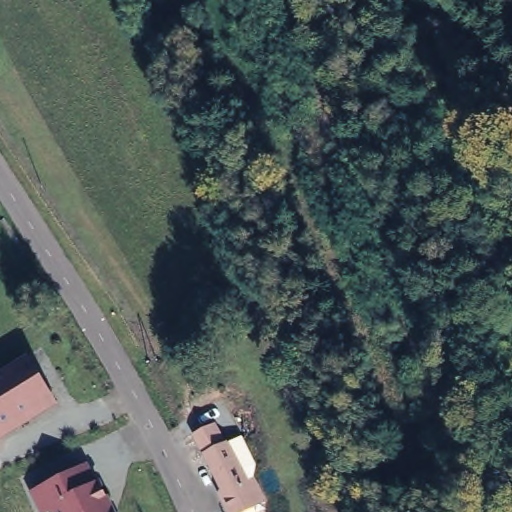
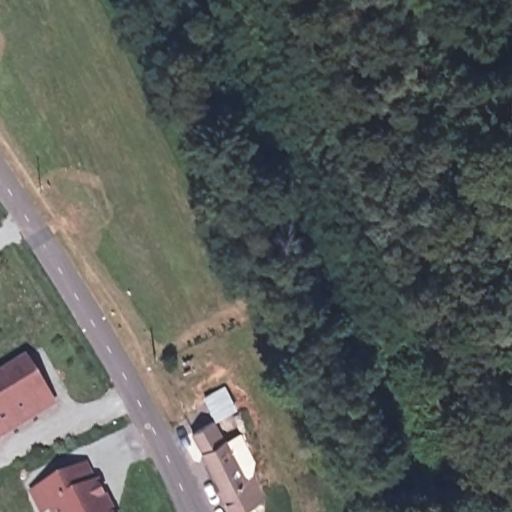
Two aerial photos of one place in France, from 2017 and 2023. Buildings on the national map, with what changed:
unchanged [(3,440),(0,442),(0,380),(24,365),(48,401),(53,408),(3,440)]
unchanged [(231,442),(252,480),(259,477),(269,503),(249,512),(228,512),(222,495),(227,493),(206,453),(231,442)]
unchanged [(26,492),(83,463),(92,481),(98,478),(115,512),(47,512),(35,512),(26,492)]

